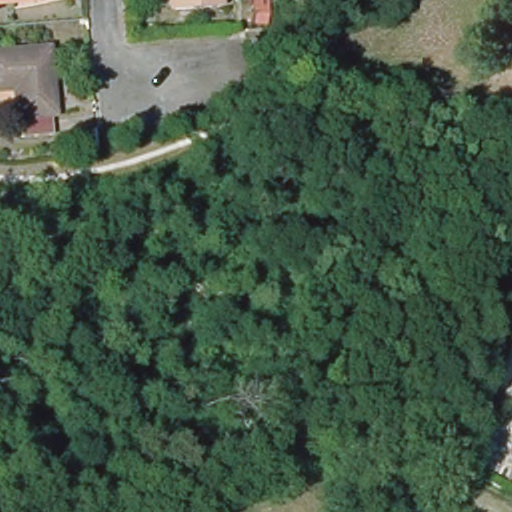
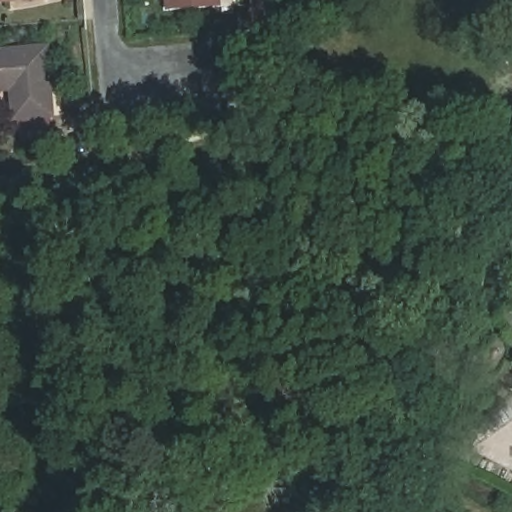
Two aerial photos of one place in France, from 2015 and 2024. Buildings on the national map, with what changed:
unchanged [(220,12),(171,16),(170,0),(219,0),(220,12)]
unchanged [(14,88),(0,89),(0,52),(47,48),(54,114),(16,117),(14,88)]

